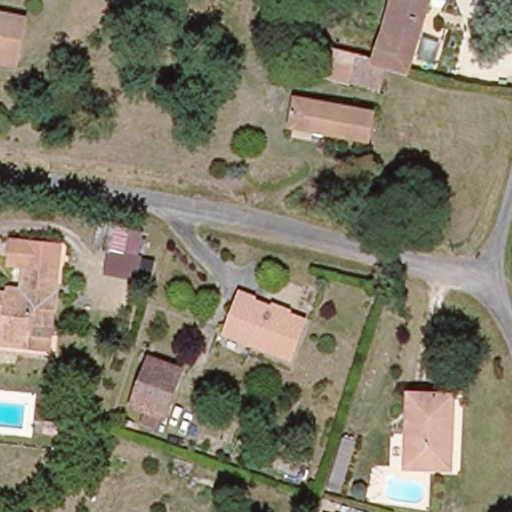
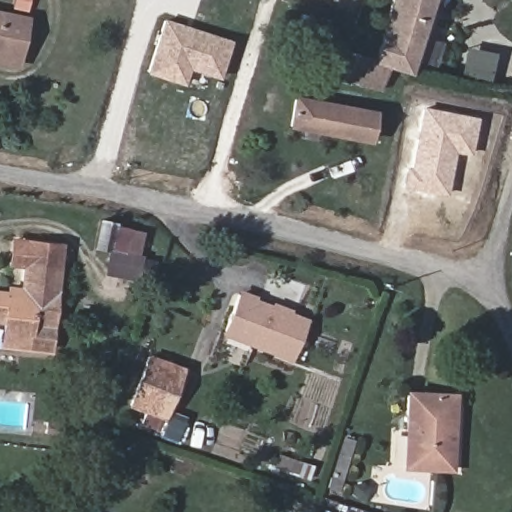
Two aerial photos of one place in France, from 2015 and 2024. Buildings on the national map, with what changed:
unchanged [(407,72),(390,68),(385,66),(370,62),(381,35),(391,0),(429,0),(425,14),(407,72)]
unchanged [(0,11),(27,16),(19,52),(17,62),(0,59),(0,11)]
new [(189,70),(184,85),(145,72),(163,18),(232,40),(219,79),(189,70)]
unchanged [(385,66),(380,87),(322,72),(328,51),(370,62),(385,66)]
unchanged [(367,139),(352,137),(317,130),(296,125),(303,97),(373,113),(367,139)]
new [(468,154),(453,151),(446,195),(401,187),(405,166),(410,168),(422,106),(477,116),(468,154)]
unchanged [(142,255),(156,258),(151,284),(104,276),(107,251),(91,249),(99,216),(122,221),(147,235),(142,255)]
unchanged [(27,291),(30,262),(24,261),(15,260),(17,237),(26,238),(64,241),(53,350),(6,346),(7,325),(0,324),(0,289),(12,290),(27,291)]
unchanged [(305,317),(291,355),(224,331),(238,293),(305,317)]
unchanged [(180,370),(161,417),(128,405),(147,357),(180,370)]
unchanged [(447,470),(407,468),(411,395),(456,396),(455,430),(453,470),(447,470)]

